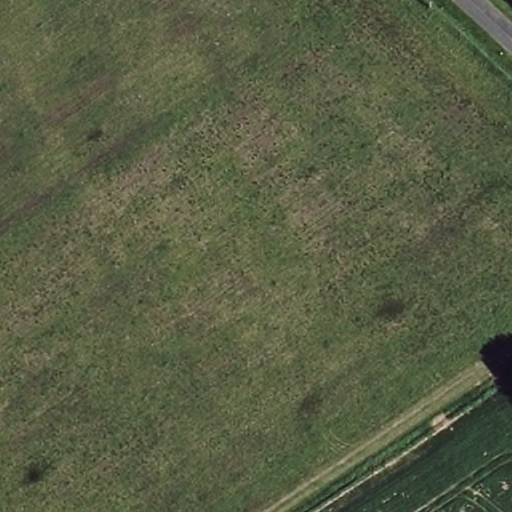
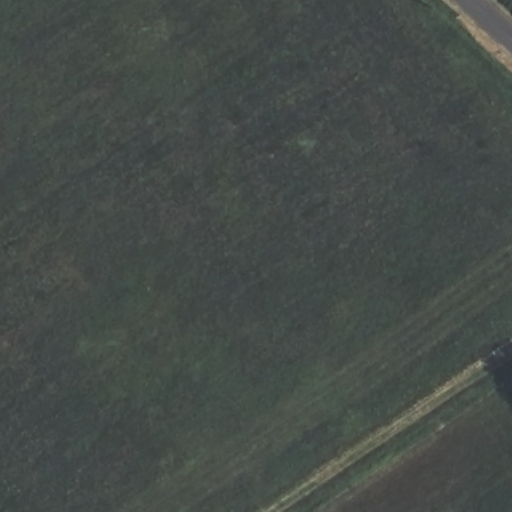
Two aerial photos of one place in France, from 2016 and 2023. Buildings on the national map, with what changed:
[]

